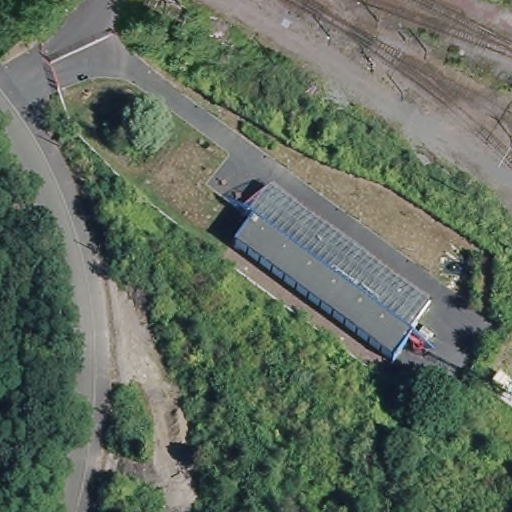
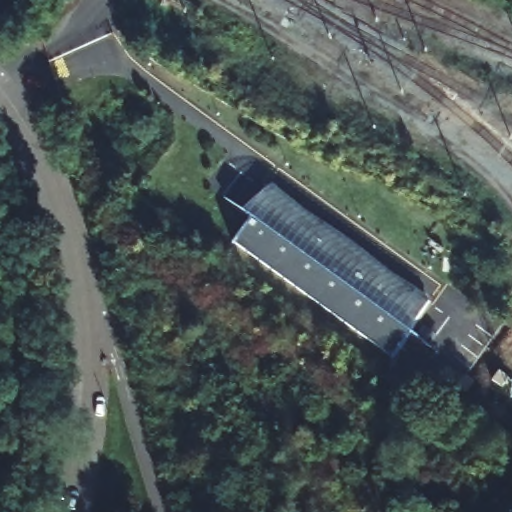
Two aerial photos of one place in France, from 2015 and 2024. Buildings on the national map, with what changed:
unchanged [(245,220),(270,187),(367,254),(362,259),(360,262),(346,301),(345,305),(342,313),(342,318),(232,246),(249,223),(245,220)]
unchanged [(367,255),(368,255),(423,295),(402,323),(409,328),(390,353),(342,318),(342,313),(345,305),(345,304),(346,301),(360,262),(362,259),(367,254),(367,255)]

